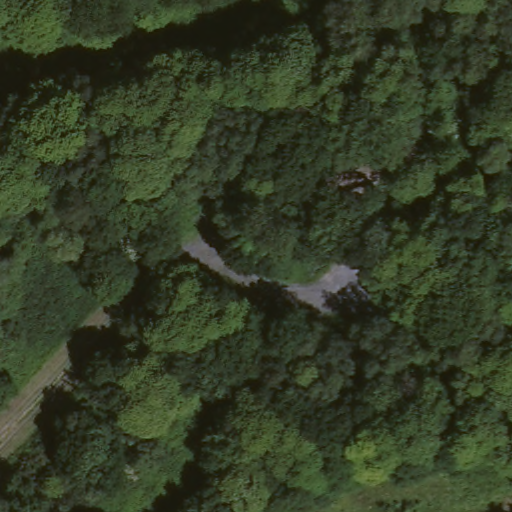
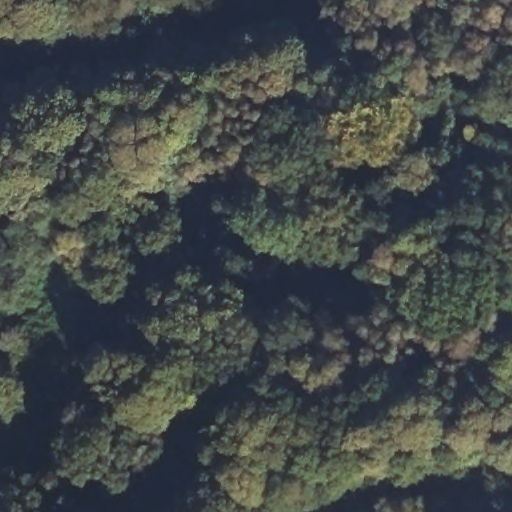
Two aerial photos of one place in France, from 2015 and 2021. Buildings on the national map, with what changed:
[]

